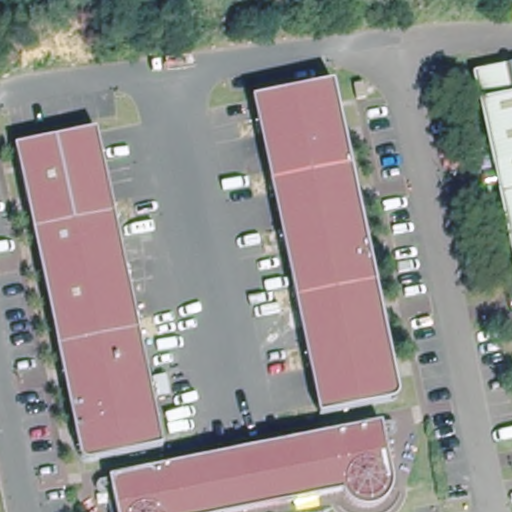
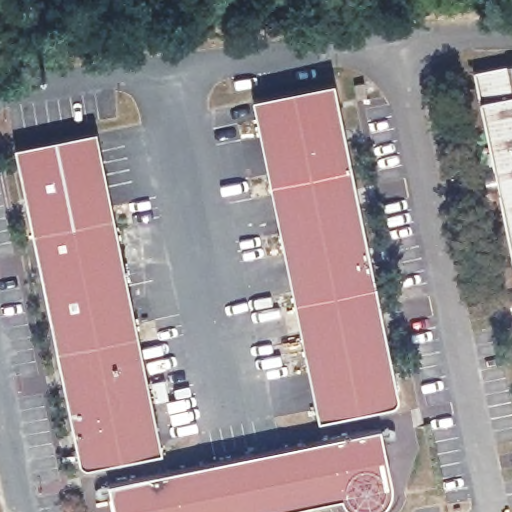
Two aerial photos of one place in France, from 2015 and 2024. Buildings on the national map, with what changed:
unchanged [(492,179),(476,179),(475,166),(488,160),(468,67),(512,58),(512,267),(492,179)]
unchanged [(319,417),(252,95),(334,80),(398,400),(319,417)]
unchanged [(159,445),(80,460),(14,141),(94,124),(159,445)]
unchanged [(512,288),(512,307),(507,308),(503,291),(512,288)]
unchanged [(390,480),(387,496),(372,506),(360,508),(351,506),(341,496),(258,512),(114,512),(107,481),(380,426),(390,480)]

